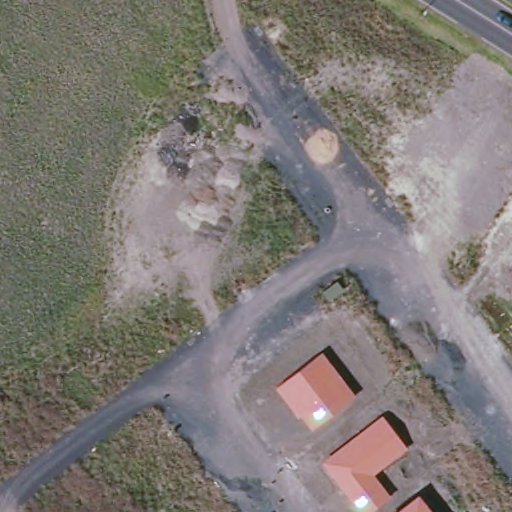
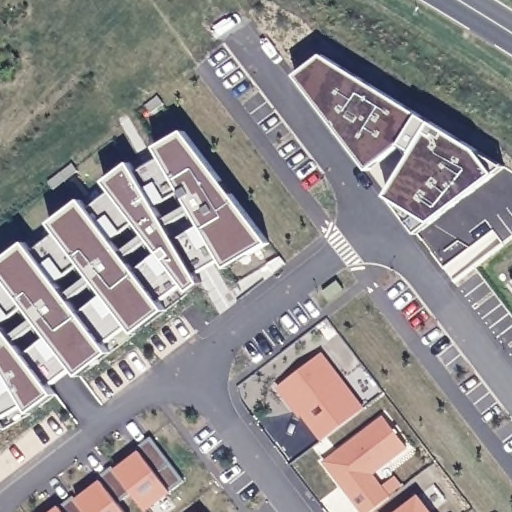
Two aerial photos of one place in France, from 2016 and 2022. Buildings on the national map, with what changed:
new [(421,115),(478,150),(503,167),(494,175),(431,222),(417,232),(396,200),(388,196),(414,152),(401,145),(369,170),(296,76),(323,55),(421,115)]
new [(0,283),(0,276),(28,255),(32,260),(57,238),(53,232),(83,208),(87,214),(111,197),(106,191),(131,172),(138,184),(161,165),(157,160),(187,144),(274,255),(228,286),(220,270),(198,285),(203,298),(193,304),(181,293),(158,311),(168,325),(138,346),(128,332),(102,355),(110,367),(85,386),(76,378),(50,397),(61,408),(32,427),(26,415),(0,428),(0,287),(3,285),(0,283)]
unchanged [(355,397),(311,430),(300,415),(297,416),(276,389),(321,353),(355,397)]
unchanged [(374,475),(389,496),(368,512),(359,512),(322,462),(384,417),(407,451),(374,475)]
new [(0,450),(0,430),(9,445),(0,450)]
new [(73,496),(75,499),(100,481),(98,477),(111,467),(115,469),(138,451),(137,447),(150,437),(184,481),(171,492),(147,510),(132,492),(119,502),(127,512),(52,512),(59,507),(73,496)]
unchanged [(392,512),(417,493),(432,512),(392,512)]

